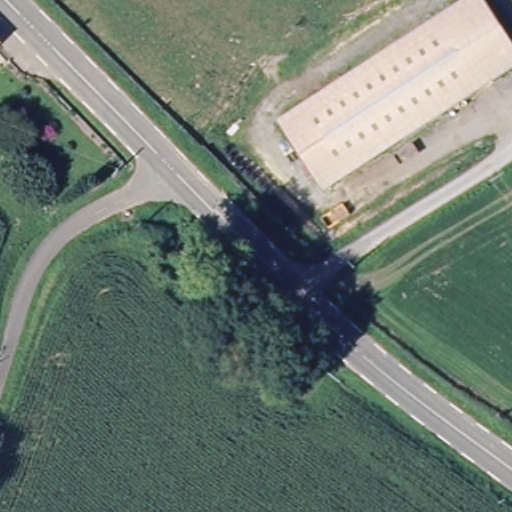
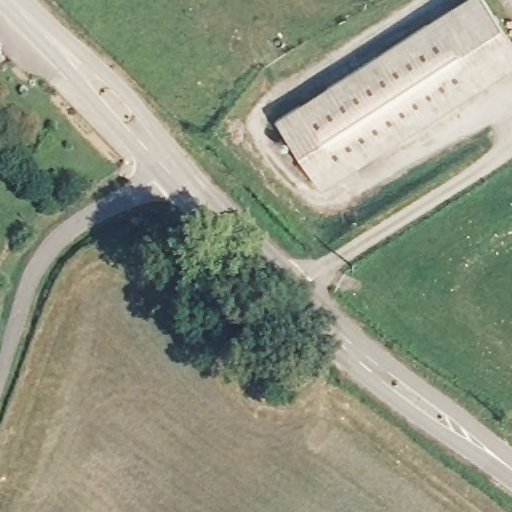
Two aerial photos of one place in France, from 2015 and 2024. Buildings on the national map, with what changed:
unchanged [(512,43),(512,67),(321,190),(276,119),(462,0),(484,0),(512,43)]
unchanged [(0,48),(0,41),(4,45),(0,48)]
unchanged [(338,275),(352,273),(355,286),(341,288),(338,275)]

